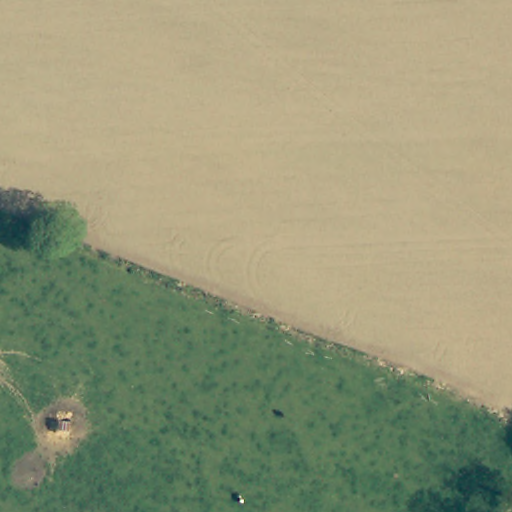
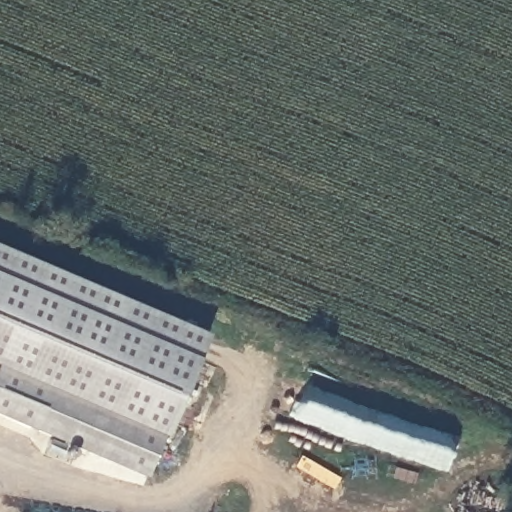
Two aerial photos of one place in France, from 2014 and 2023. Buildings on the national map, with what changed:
new [(148,478),(0,415),(0,245),(211,335),(148,478)]

